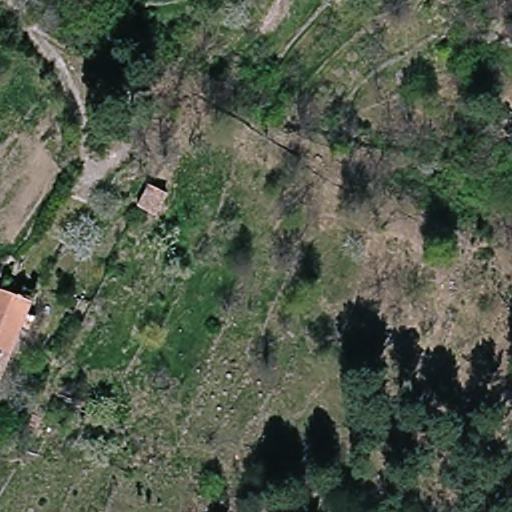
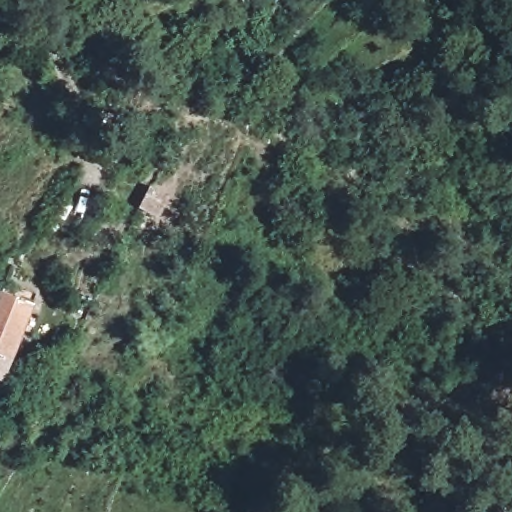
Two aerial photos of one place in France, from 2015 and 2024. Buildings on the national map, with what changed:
unchanged [(137,209),(151,182),(169,190),(155,218),(137,209)]
unchanged [(0,352),(0,304),(11,285),(38,301),(6,355),(0,352)]
unchanged [(6,366),(0,372),(0,352),(6,355),(6,366)]

